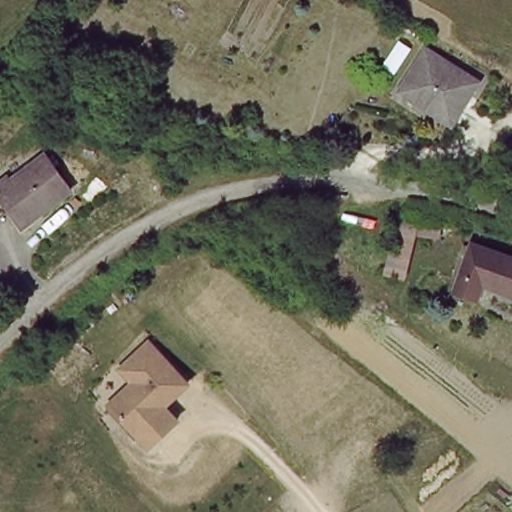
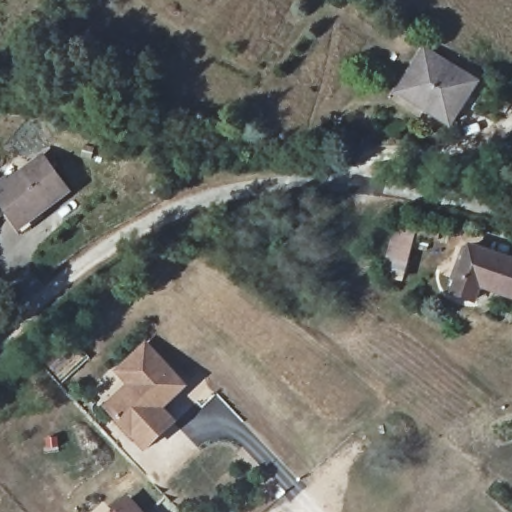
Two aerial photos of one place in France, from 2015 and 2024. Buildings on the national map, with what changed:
unchanged [(478,81),(452,125),(398,93),(423,50),(478,81)]
unchanged [(72,189),(24,223),(0,192),(0,188),(46,155),(72,189)]
unchanged [(407,281),(380,274),(394,219),(417,226),(407,281)]
unchanged [(476,281),(470,297),(450,289),(467,241),(512,258),(512,294),(476,281)]
unchanged [(160,458),(147,443),(107,401),(131,378),(118,366),(145,340),(198,395),(174,417),(188,432),(160,458)]
new [(130,496),(144,512),(112,512),(130,496)]

